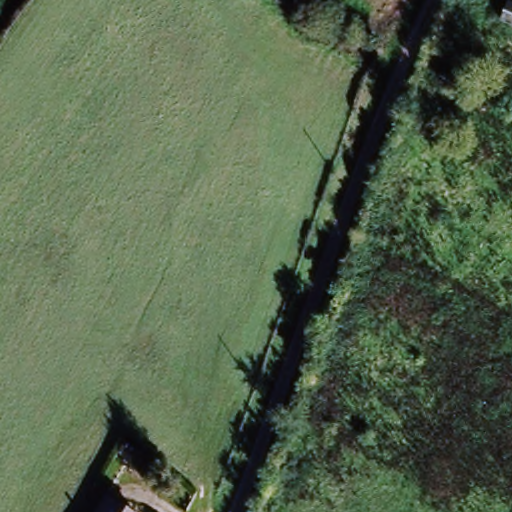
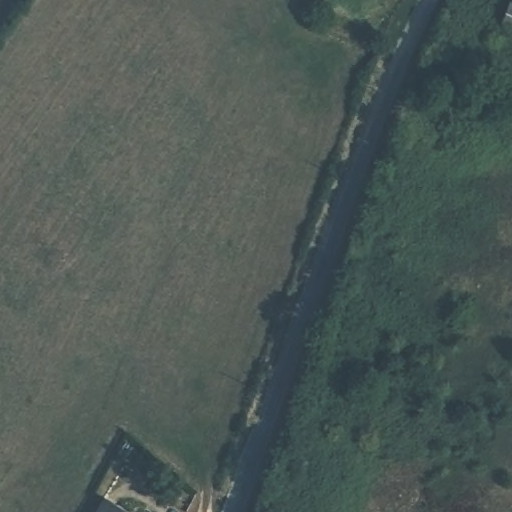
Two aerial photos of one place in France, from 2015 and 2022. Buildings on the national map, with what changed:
unchanged [(500,23),(508,1),(512,2),(512,28),(500,23)]
unchanged [(101,500),(118,512),(91,512),(101,500)]

